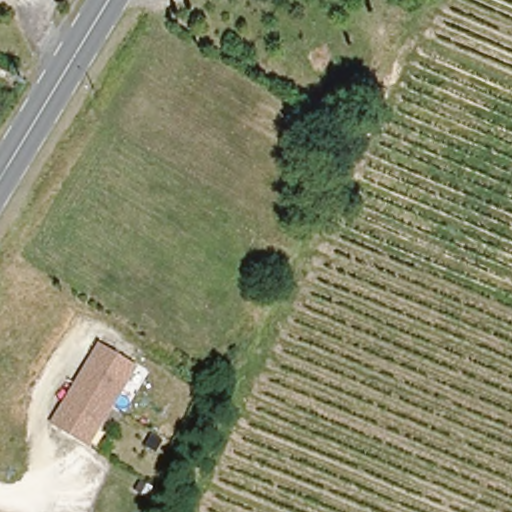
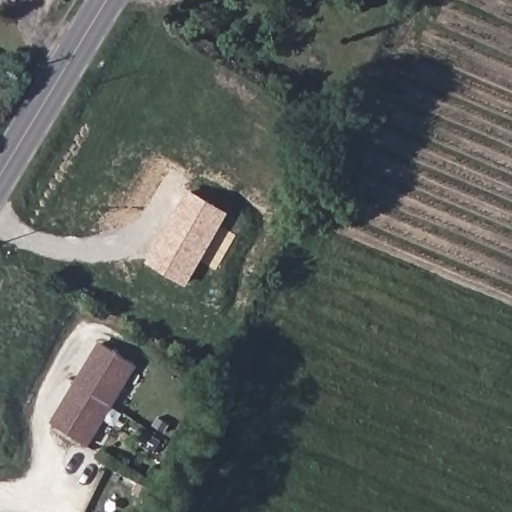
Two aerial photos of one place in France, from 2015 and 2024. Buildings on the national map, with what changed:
new [(189,287),(148,262),(190,189),(231,212),(189,287)]
unchanged [(86,446),(49,423),(97,341),(135,365),(86,446)]

